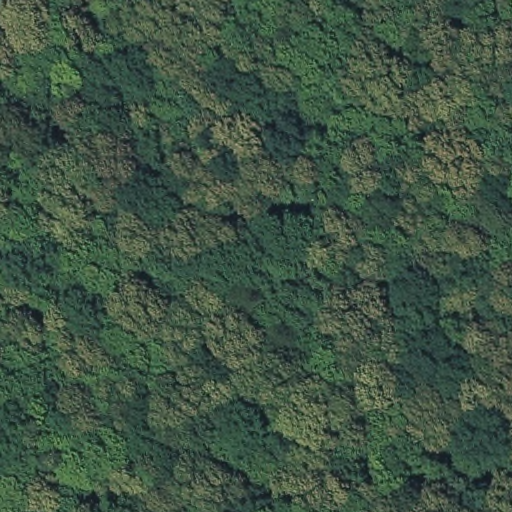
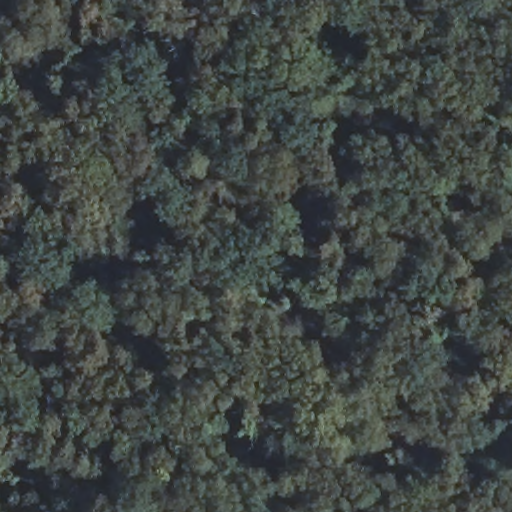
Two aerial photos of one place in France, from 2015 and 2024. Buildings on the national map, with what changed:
[]

